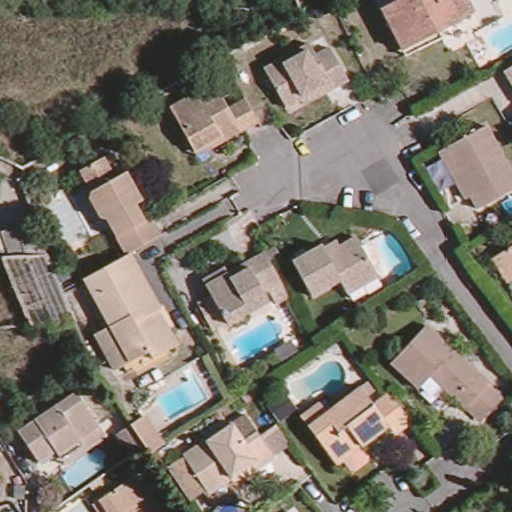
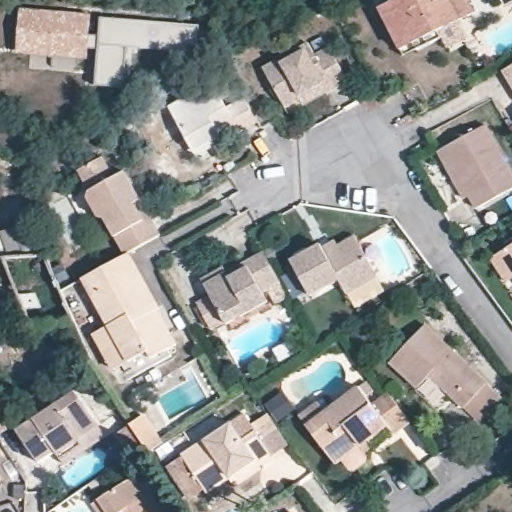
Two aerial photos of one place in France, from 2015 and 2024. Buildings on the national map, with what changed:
unchanged [(398,48),(396,49),(376,8),(392,0),(462,0),(469,12),(425,34),(429,41),(401,55),(398,48)]
new [(498,0),(512,0),(502,6),(498,0)]
new [(88,20),(86,39),(98,40),(100,22),(198,32),(196,51),(186,50),(186,57),(125,51),(120,92),(93,90),(96,53),(85,52),(84,60),(17,53),(18,45),(21,14),(88,20)]
unchanged [(302,99),(287,107),(265,67),(310,42),(316,54),(332,46),(349,79),(334,87),(305,104),(302,99)]
unchanged [(512,72),(512,98),(501,79),(512,72)]
unchanged [(199,150),(174,105),(219,81),(233,106),(250,97),(264,122),(245,132),(202,155),(199,150)]
unchanged [(438,152),(444,148),(485,125),(512,175),(512,190),(477,209),(470,196),(464,199),(438,152)]
unchanged [(165,235),(133,252),(129,255),(110,218),(102,216),(93,198),(95,191),(84,170),(108,156),(120,177),(131,171),(146,200),(156,217),(165,235)]
unchanged [(9,258),(1,234),(35,222),(48,257),(9,258)]
unchanged [(353,299),(349,294),(344,286),(317,302),(296,267),(326,250),(328,253),(340,247),(343,252),(361,242),(380,277),(383,282),(353,299)]
unchanged [(511,283),(496,260),(512,249),(512,283),(511,283)]
unchanged [(99,332),(114,325),(88,277),(129,255),(133,252),(164,309),(162,310),(181,345),(175,347),(156,358),(152,351),(134,361),(119,369),(99,332)]
unchanged [(0,258),(9,258),(48,257),(60,287),(74,322),(28,326),(0,258)]
unchanged [(282,313),(274,299),(269,302),(274,311),(233,333),(211,294),(209,289),(231,277),(233,282),(251,273),(270,262),(294,306),(282,313)]
unchanged [(484,423),(469,409),(435,377),(423,389),(395,362),(429,326),(492,385),(507,398),(484,423)]
unchanged [(364,452),(359,446),(335,465),(307,427),(299,416),(323,399),(331,409),(366,383),(373,392),(365,397),(371,406),(389,394),(410,422),(393,436),(386,426),(368,440),(373,446),(364,452)]
unchanged [(59,451),(53,442),(50,438),(34,448),(19,426),(76,387),(95,413),(100,422),(59,451)]
unchanged [(0,416),(0,408),(3,414),(0,416)]
unchanged [(123,442),(113,427),(126,417),(131,426),(143,417),(163,446),(150,454),(143,443),(131,452),(123,442)]
unchanged [(229,483),(206,497),(183,462),(246,421),(273,462),(259,471),(233,488),(229,483)]
unchanged [(94,506),(100,502),(134,478),(146,496),(151,492),(164,512),(98,512),(94,506)]

